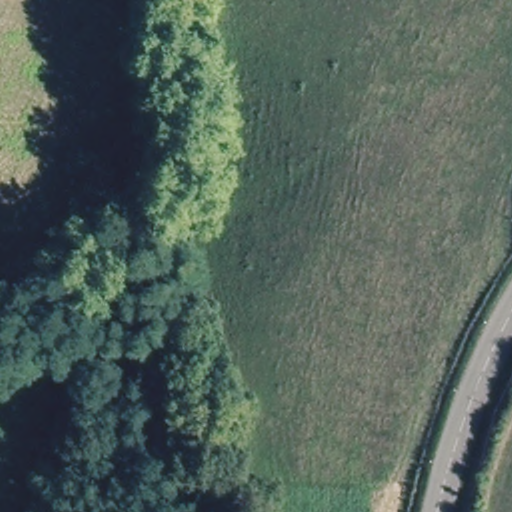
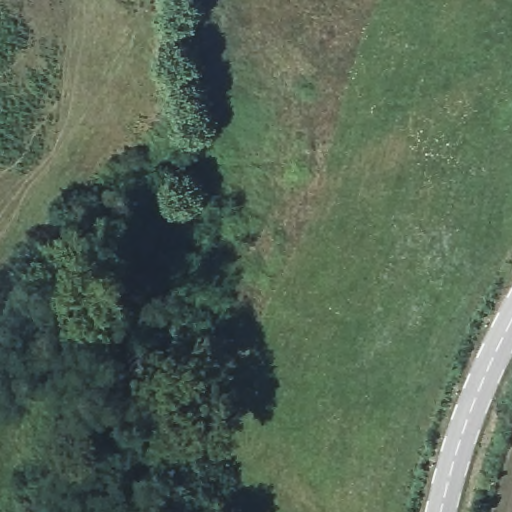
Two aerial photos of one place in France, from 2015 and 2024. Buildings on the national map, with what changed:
[]

